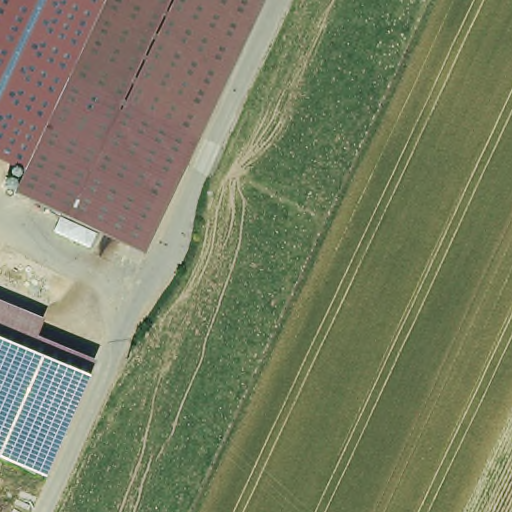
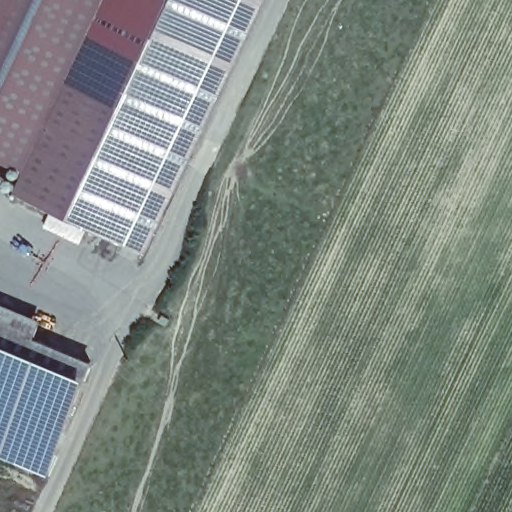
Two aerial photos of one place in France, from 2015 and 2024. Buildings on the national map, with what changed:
unchanged [(0,0),(100,0),(67,71),(64,77),(25,168),(24,172),(0,161),(0,0)]
unchanged [(64,77),(101,0),(259,0),(195,139),(65,78),(64,77)]
unchanged [(65,78),(195,139),(142,251),(15,193),(64,77),(65,78)]
unchanged [(0,301),(42,319),(36,336),(95,362),(47,475),(0,456),(0,301)]

